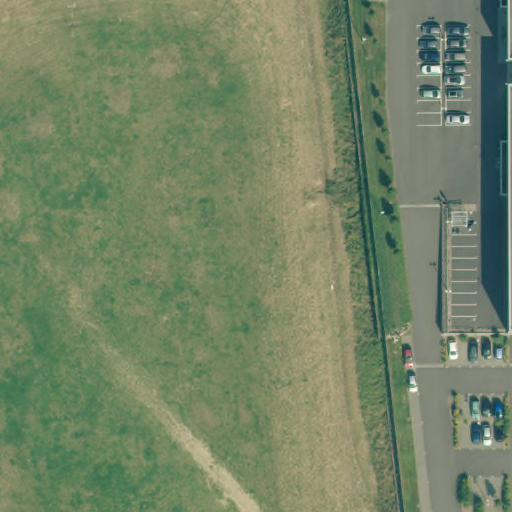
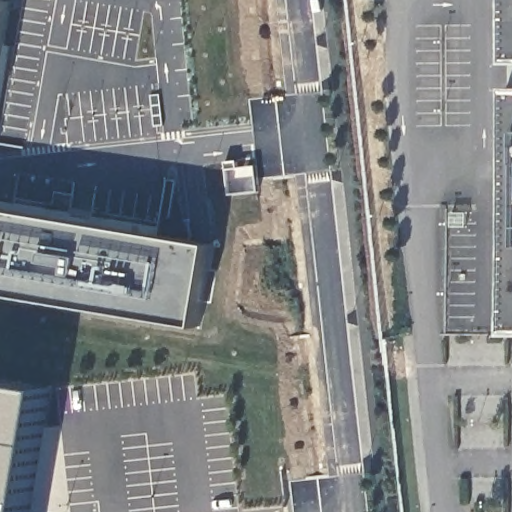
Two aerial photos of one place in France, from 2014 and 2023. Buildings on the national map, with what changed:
new [(0,69),(0,0),(3,0),(11,1),(0,69)]
unchanged [(507,64),(506,9),(500,9),(500,0),(512,0),(512,63),(507,64)]
unchanged [(508,335),(507,258),(507,198),(500,198),(500,141),(507,141),(507,87),(512,87),(512,335),(508,335)]
new [(237,163),(237,170),(255,169),(258,194),(229,198),(225,164),(237,163)]
new [(200,327),(0,293),(0,208),(214,244),(200,327)]
new [(28,512),(0,512),(0,379),(49,387),(28,512)]

